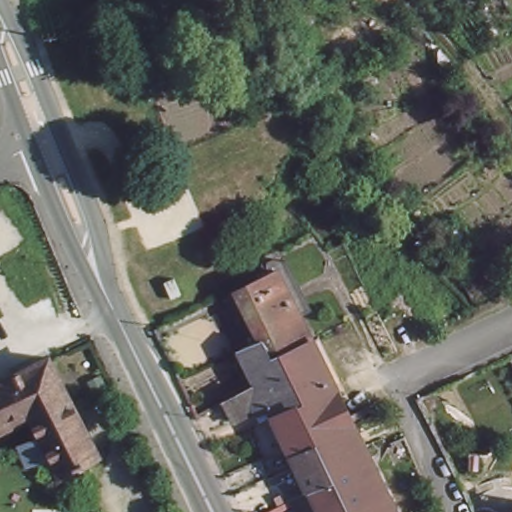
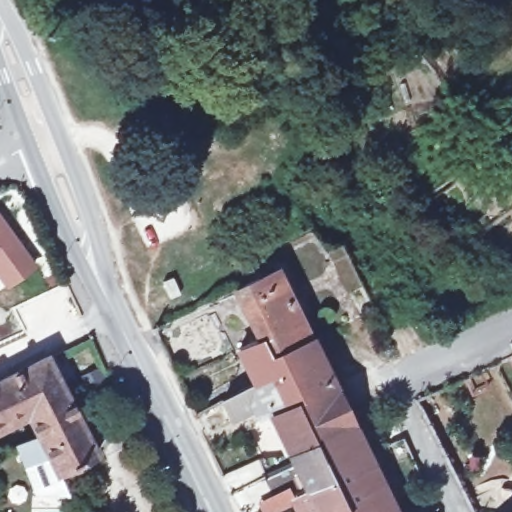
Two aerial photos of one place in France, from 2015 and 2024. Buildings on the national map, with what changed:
new [(5,291),(0,284),(0,230),(31,273),(5,291)]
unchanged [(293,338),(261,353),(250,331),(235,291),(263,276),(271,272),(301,333),(293,338)]
unchanged [(152,291),(142,296),(137,285),(147,280),(152,291)]
unchanged [(325,382),(291,398),(279,405),(263,370),(248,377),(230,342),(236,338),(250,331),(261,353),(293,338),(301,333),(325,382)]
unchanged [(47,350),(70,393),(81,415),(96,446),(62,465),(50,448),(24,456),(16,435),(37,425),(28,410),(23,400),(7,370),(47,350)]
unchanged [(28,410),(12,417),(0,423),(0,373),(1,373),(7,370),(23,400),(28,410)]
unchanged [(271,428),(263,410),(248,415),(243,405),(223,415),(213,395),(248,377),(263,370),(279,405),(291,398),(308,435),(282,448),(271,428)]
unchanged [(342,416),(308,435),(291,398),(325,382),(342,416)]
unchanged [(282,448),(308,435),(327,474),(301,486),(282,448)]
unchanged [(342,505),(341,505),(331,482),(368,466),(391,512),(328,512),(342,505)]
unchanged [(296,496),(283,503),(276,506),(262,478),(282,470),(296,496)]
unchanged [(308,503),(308,502),(301,486),(327,474),(331,482),(341,505),(342,505),(328,512),(313,512),(308,503)]
unchanged [(512,509),(512,512),(509,512),(512,509)]

